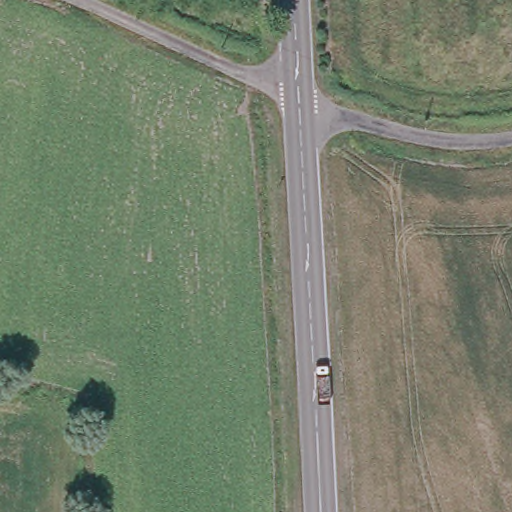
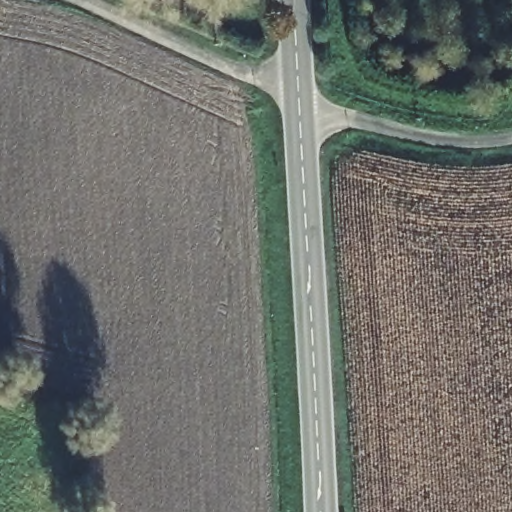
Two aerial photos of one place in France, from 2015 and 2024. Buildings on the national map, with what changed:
[]

